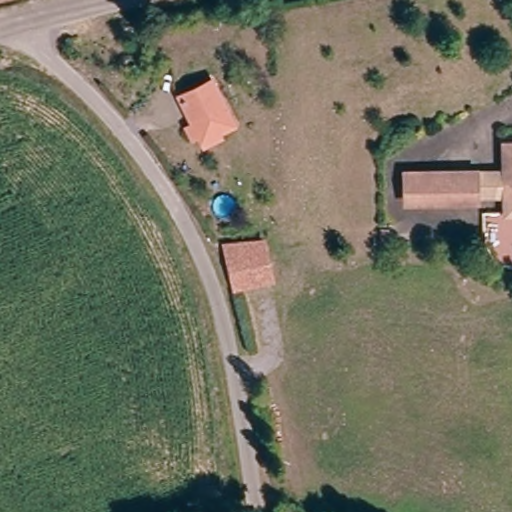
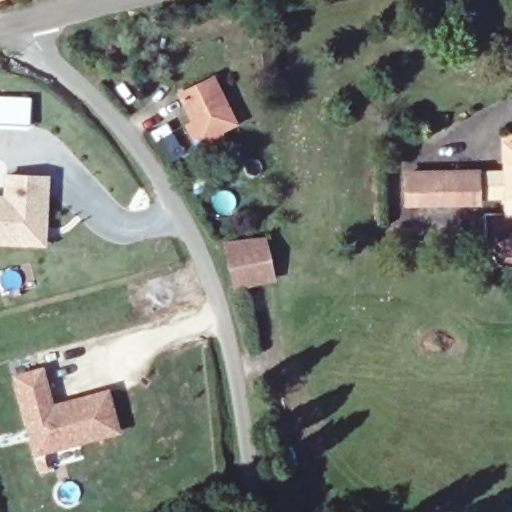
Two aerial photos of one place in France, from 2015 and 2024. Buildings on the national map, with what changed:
unchanged [(207,144),(200,131),(189,137),(183,126),(195,119),(180,91),(208,79),(232,122),(217,129),(221,136),(207,144)]
new [(0,127),(0,95),(30,96),(28,126),(0,127)]
unchanged [(503,138),(512,138),(512,217),(505,217),(503,138)]
unchanged [(403,209),(403,169),(477,167),(478,207),(403,209)]
new [(0,246),(0,196),(1,196),(3,173),(50,176),(45,246),(0,246)]
unchanged [(235,290),(222,242),(267,238),(275,281),(235,290)]
new [(24,398),(20,382),(16,364),(41,357),(46,375),(50,391),(51,395),(58,393),(106,380),(116,419),(69,432),(45,438),(36,441),(24,398)]

